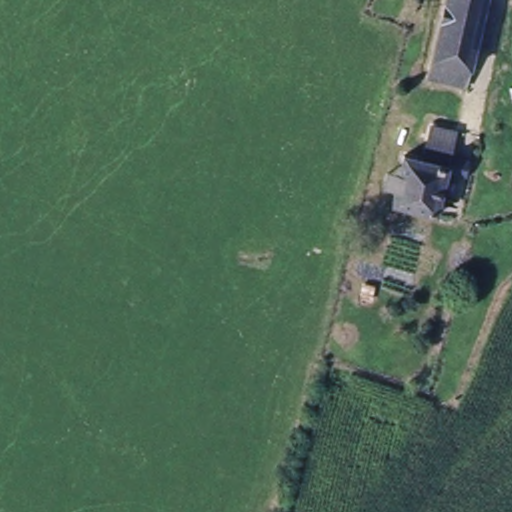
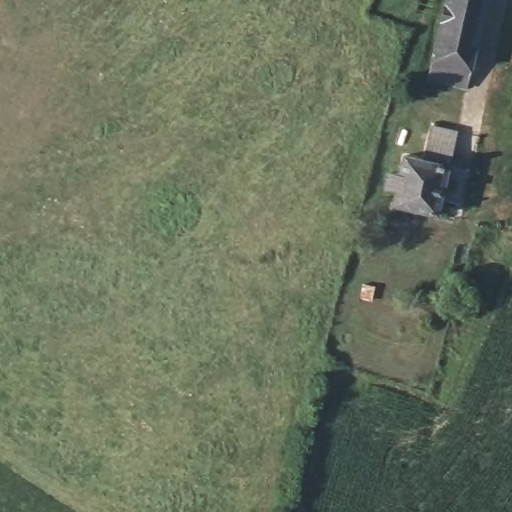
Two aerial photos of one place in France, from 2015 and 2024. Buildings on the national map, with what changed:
unchanged [(452,0),(486,0),(465,93),(435,86),(452,0)]
unchanged [(390,210),(394,192),(379,189),(383,171),(398,174),(402,159),(425,164),(431,135),(455,140),(438,224),(390,210)]

